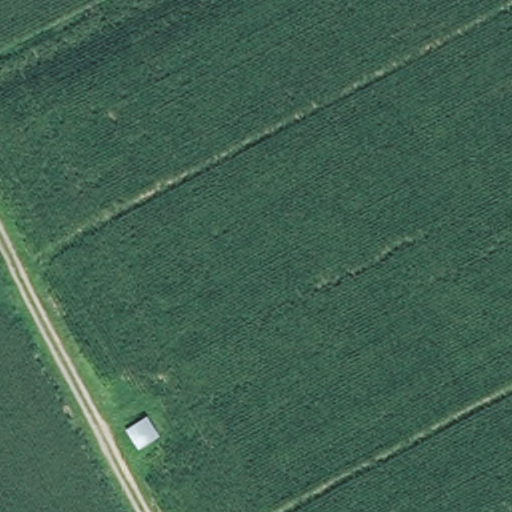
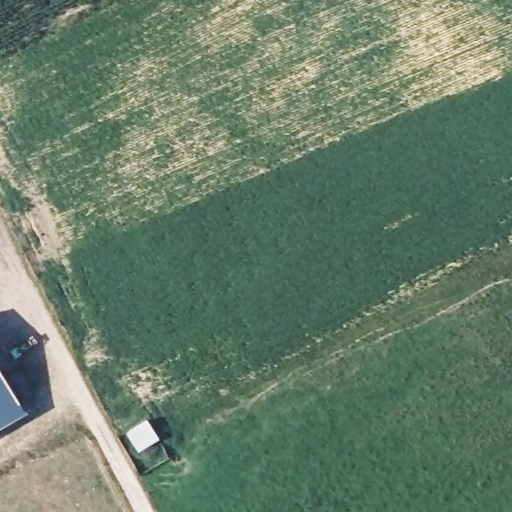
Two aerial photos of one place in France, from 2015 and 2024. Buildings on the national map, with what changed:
new [(0,427),(0,366),(27,412),(0,427)]
unchanged [(162,439),(137,451),(126,429),(151,416),(162,439)]

